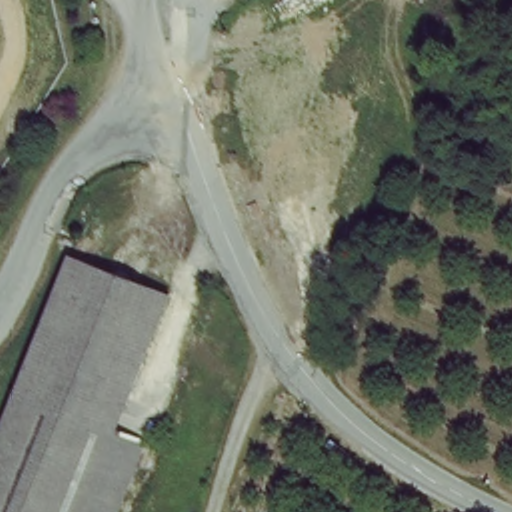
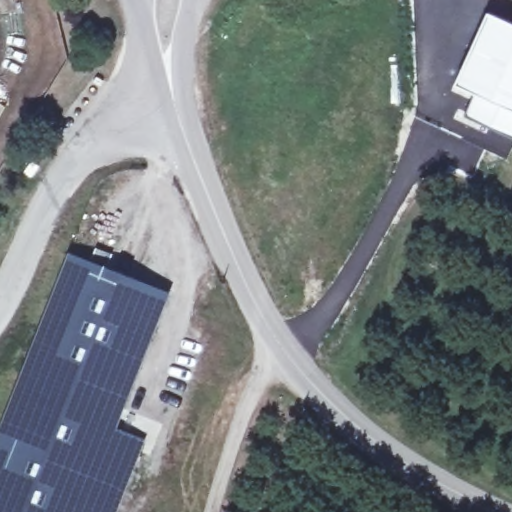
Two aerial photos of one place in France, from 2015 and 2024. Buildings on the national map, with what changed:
new [(512,22),(512,136),(463,114),(472,95),(451,86),(486,10),(512,22)]
unchanged [(19,394),(75,255),(172,292),(118,430),(19,394)]
unchanged [(118,430),(147,440),(117,512),(0,512),(0,440),(19,394),(118,430)]

